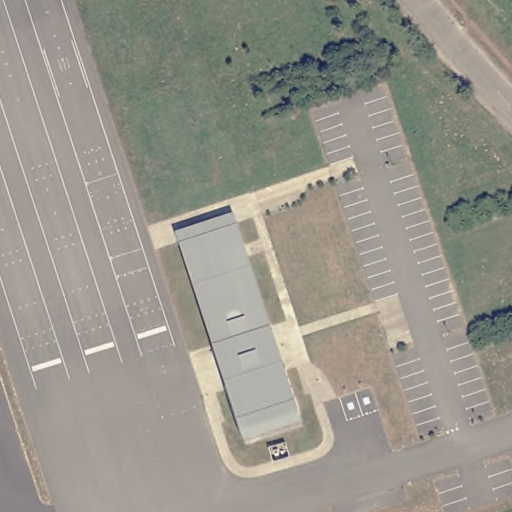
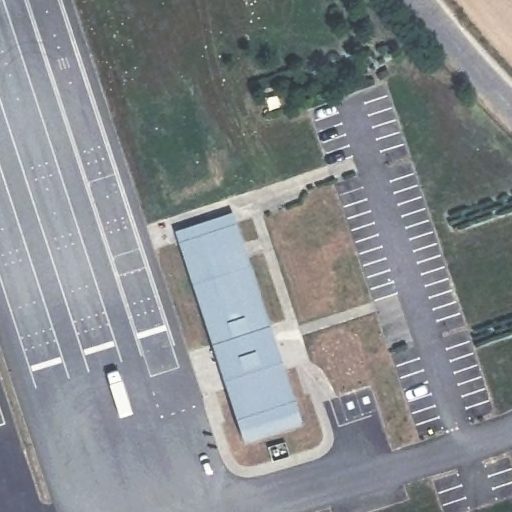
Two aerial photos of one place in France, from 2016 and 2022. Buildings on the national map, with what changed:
unchanged [(229,215),(269,334),(261,337),(273,365),(283,361),(301,417),(244,436),(225,381),(234,378),(226,349),(218,351),(178,233),(229,215)]
unchanged [(282,443),(286,458),(269,463),(265,448),(282,443)]

